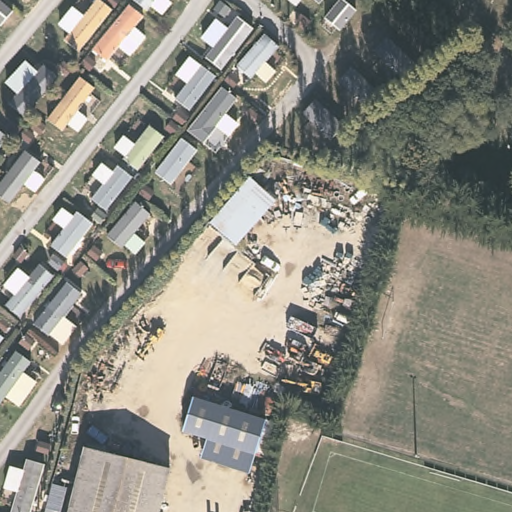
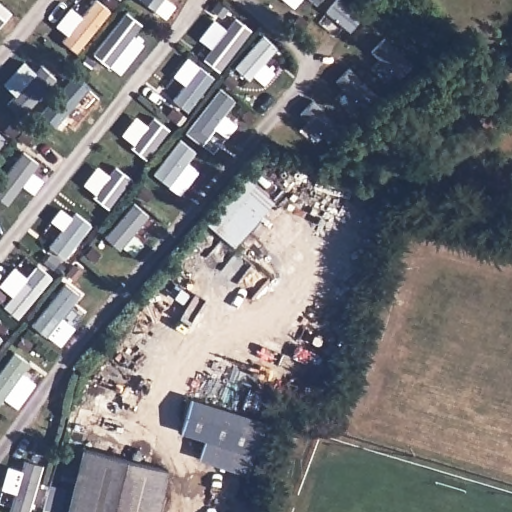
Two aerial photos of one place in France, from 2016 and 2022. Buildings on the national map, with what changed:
unchanged [(277,200),(235,245),(209,223),(249,176),(277,200)]
unchanged [(265,421),(249,473),(202,457),(208,438),(183,431),(194,398),(265,421)]
unchanged [(169,467),(158,512),(70,512),(87,447),(169,467)]

